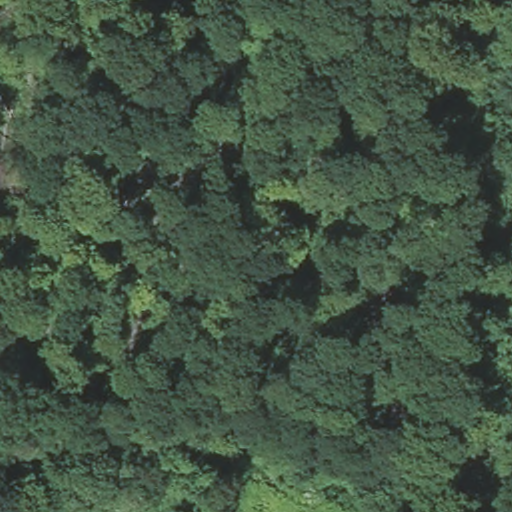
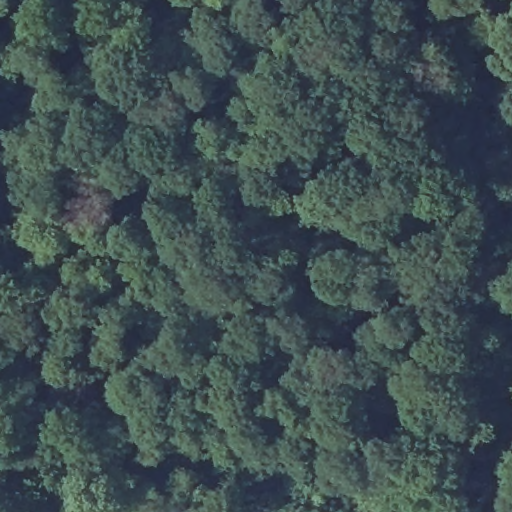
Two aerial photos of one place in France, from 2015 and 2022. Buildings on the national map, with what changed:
[]

